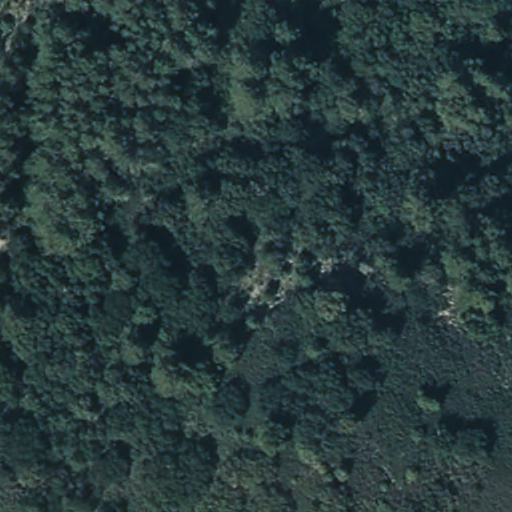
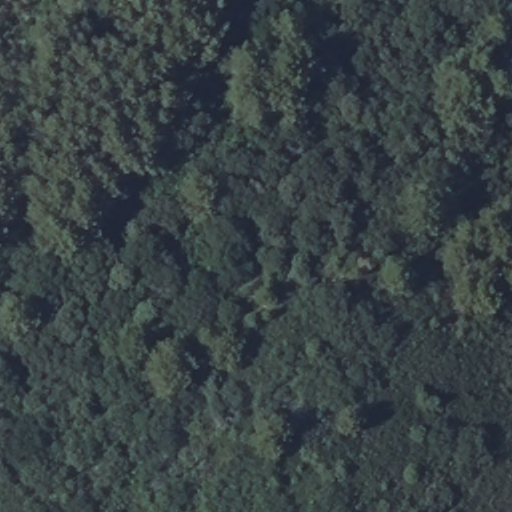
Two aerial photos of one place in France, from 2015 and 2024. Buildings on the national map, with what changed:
[]

